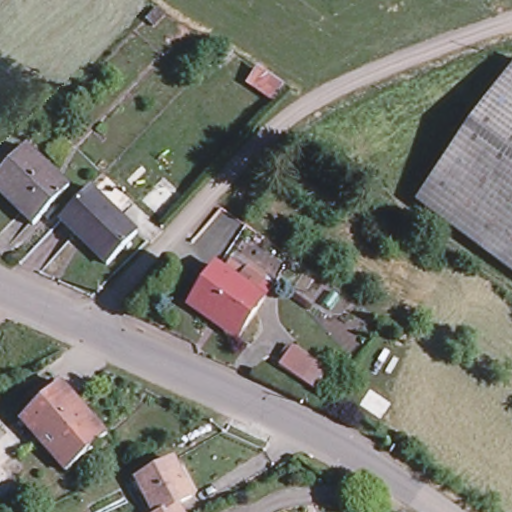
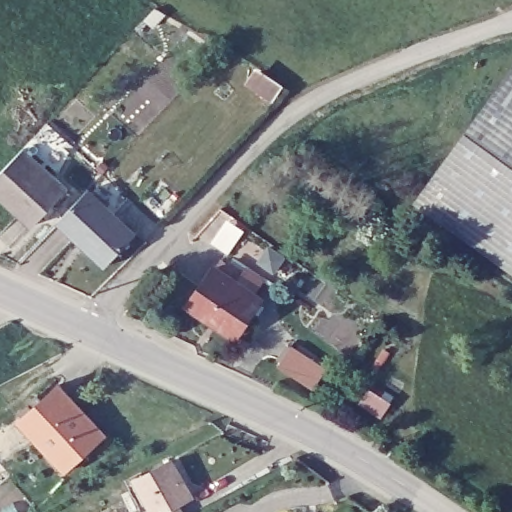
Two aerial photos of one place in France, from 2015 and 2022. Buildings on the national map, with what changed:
unchanged [(512,56),(512,270),(411,197),(512,56)]
unchanged [(67,188),(32,225),(0,195),(0,171),(22,148),(67,188)]
unchanged [(60,221),(79,200),(89,190),(112,210),(119,217),(89,249),(86,246),(78,239),(60,221)]
unchanged [(119,217),(137,234),(107,266),(89,249),(119,217)]
unchanged [(203,320),(202,322),(186,312),(212,273),(251,300),(259,288),(267,293),(259,305),(235,341),(203,320)]
unchanged [(316,390),(303,381),(280,366),(283,362),(281,361),(291,346),(292,348),(316,363),(328,371),(316,390)]
unchanged [(54,381),(101,436),(60,471),(13,416),(54,381)]
unchanged [(0,463),(0,435),(14,452),(0,463)]
unchanged [(176,457),(195,492),(181,500),(188,512),(151,512),(157,509),(141,476),(176,457)]
unchanged [(12,463),(20,471),(0,487),(0,471),(1,473),(12,463)]
unchanged [(0,489),(7,498),(0,504),(0,489)]

